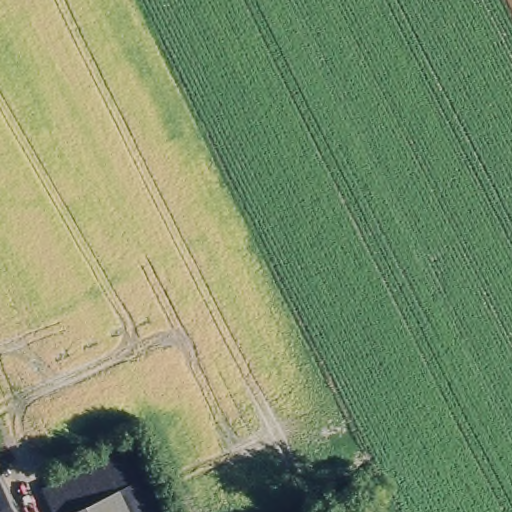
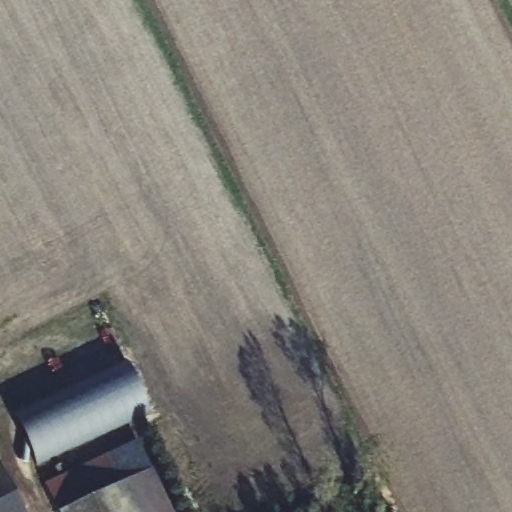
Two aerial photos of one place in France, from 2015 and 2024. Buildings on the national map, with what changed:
new [(10,412),(124,359),(152,414),(36,468),(10,412)]
new [(137,443),(150,473),(121,486),(107,456),(137,443)]
unchanged [(56,512),(43,485),(107,456),(121,486),(65,512),(56,512)]
unchanged [(169,512),(133,512),(121,486),(150,473),(169,512)]
unchanged [(0,512),(0,482),(14,512),(0,512)]
unchanged [(133,512),(65,512),(121,486),(133,512)]

